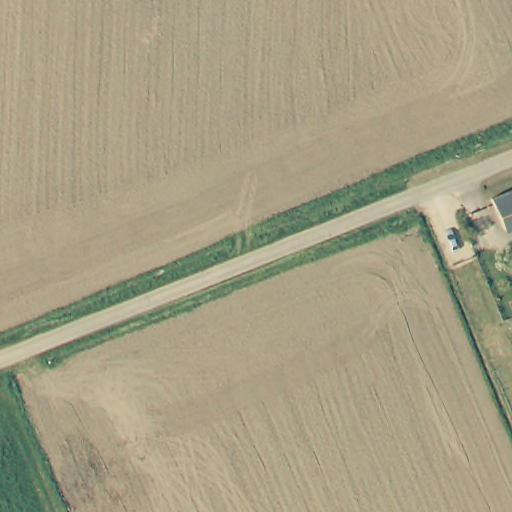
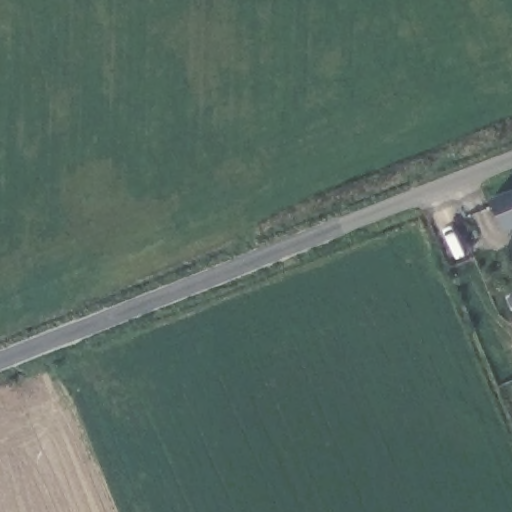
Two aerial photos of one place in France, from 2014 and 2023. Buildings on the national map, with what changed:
unchanged [(512,196),(512,234),(508,235),(494,202),(512,196)]

